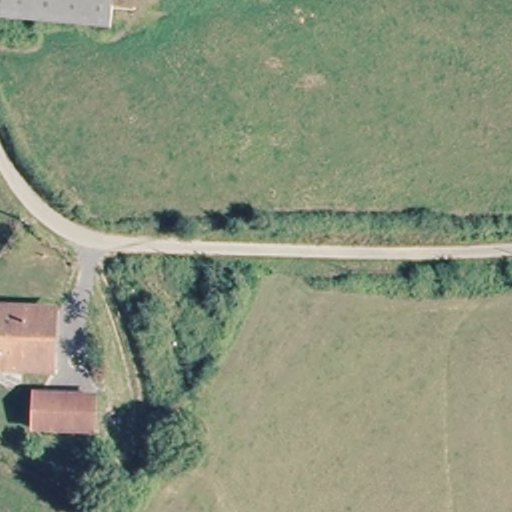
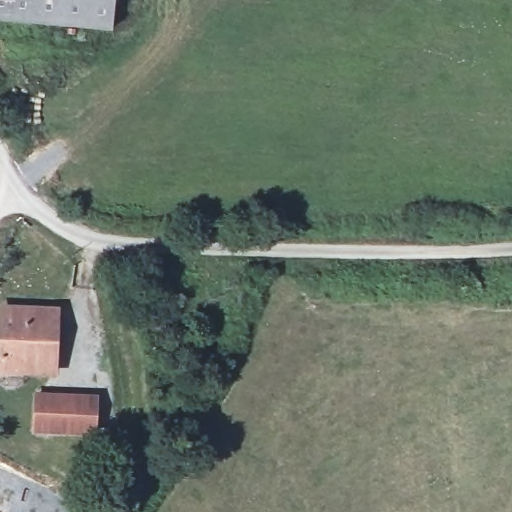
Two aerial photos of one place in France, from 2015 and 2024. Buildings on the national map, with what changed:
unchanged [(116,30),(0,25),(0,0),(117,0),(116,30)]
unchanged [(56,375),(36,374),(0,373),(0,307),(57,310),(56,375)]
unchanged [(95,399),(94,434),(36,433),(36,397),(95,399)]

